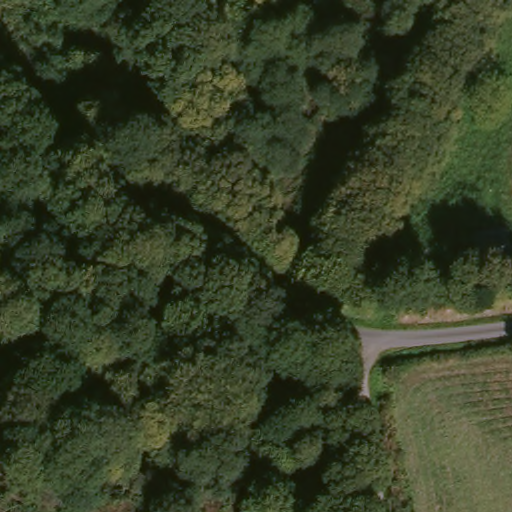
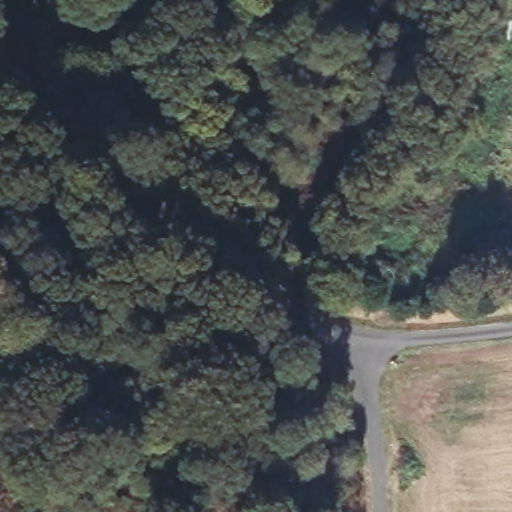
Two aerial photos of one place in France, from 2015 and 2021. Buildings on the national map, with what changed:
unchanged [(510,285),(459,291),(450,243),(501,236),(510,285)]

